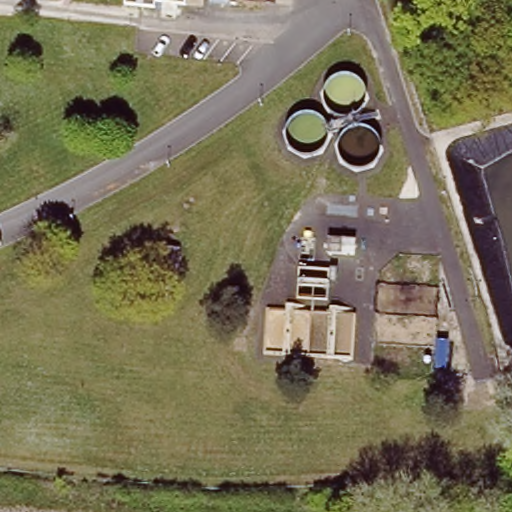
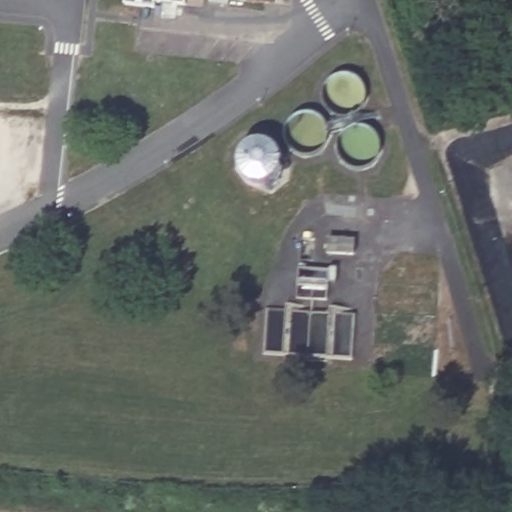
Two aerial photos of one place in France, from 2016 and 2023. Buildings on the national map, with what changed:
unchanged [(353,253),(327,253),(328,239),(354,239),(353,253)]
unchanged [(174,283),(154,282),(157,246),(177,248),(174,283)]

